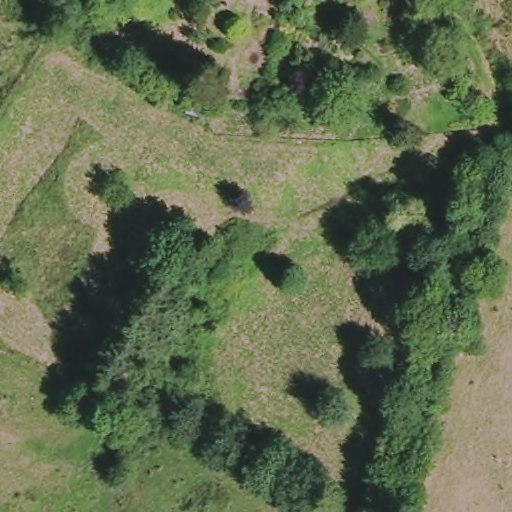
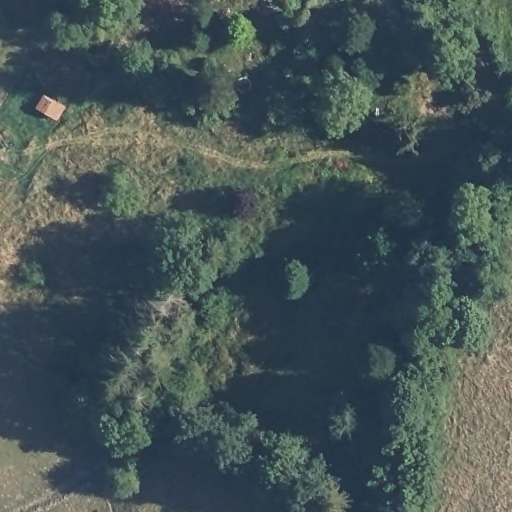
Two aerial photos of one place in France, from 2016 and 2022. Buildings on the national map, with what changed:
unchanged [(220,2),(214,0),(220,0),(220,2)]
unchanged [(253,3),(235,0),(253,0),(253,3)]

